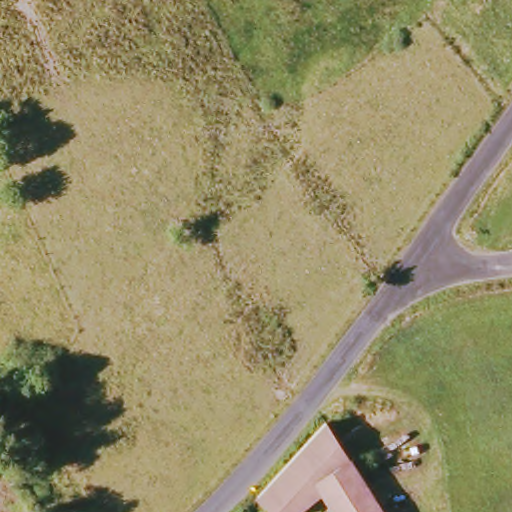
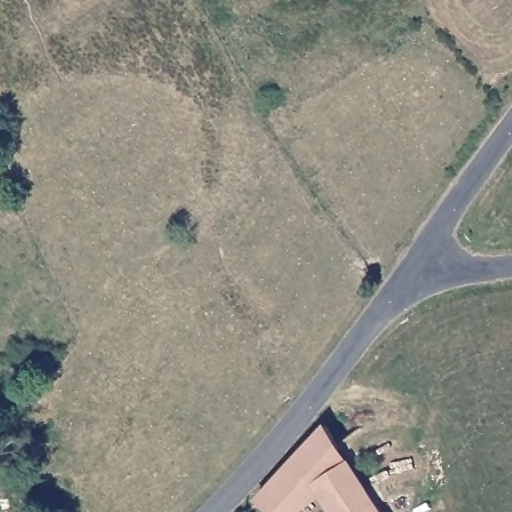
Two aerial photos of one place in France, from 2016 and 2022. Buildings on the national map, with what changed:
unchanged [(327,486),(303,512),(280,512),(266,500),(336,428),(390,512),(342,512),(327,486)]

